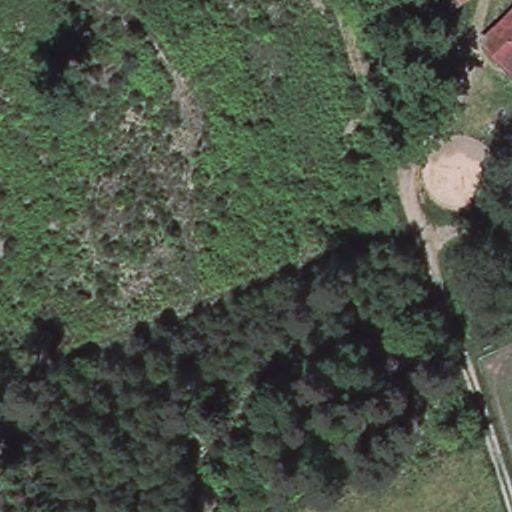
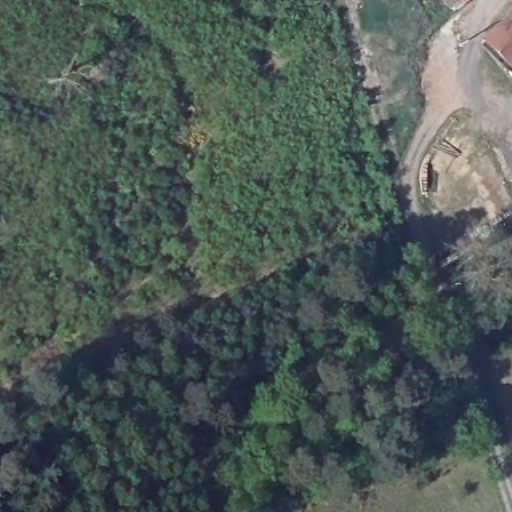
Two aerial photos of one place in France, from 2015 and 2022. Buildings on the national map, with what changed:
unchanged [(452,13),(444,0),(473,0),(452,13)]
unchanged [(512,12),(512,74),(482,45),(489,39),(486,36),(512,12)]

